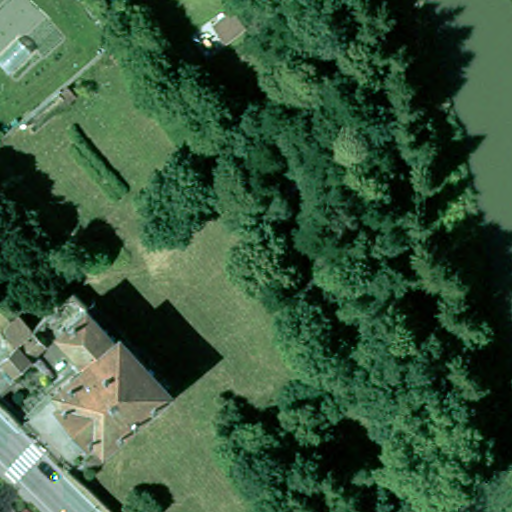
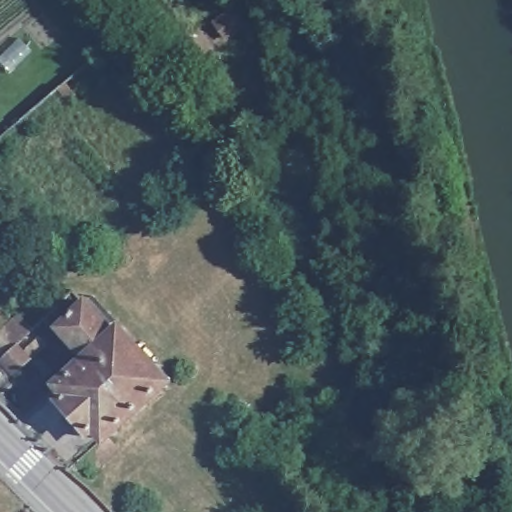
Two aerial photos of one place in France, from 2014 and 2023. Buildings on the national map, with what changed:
unchanged [(212,26),(218,22),(232,12),(245,27),(230,38),(223,42),(212,26)]
unchanged [(87,456),(107,438),(96,427),(93,431),(65,401),(69,397),(60,387),(90,360),(61,327),(89,299),(120,333),(123,330),(170,382),(110,435),(121,446),(98,467),(87,456)]
unchanged [(1,365),(15,352),(0,336),(0,333),(16,318),(32,335),(20,347),(32,362),(14,378),(1,365)]
unchanged [(417,399),(434,418),(418,432),(401,412),(417,399)]

